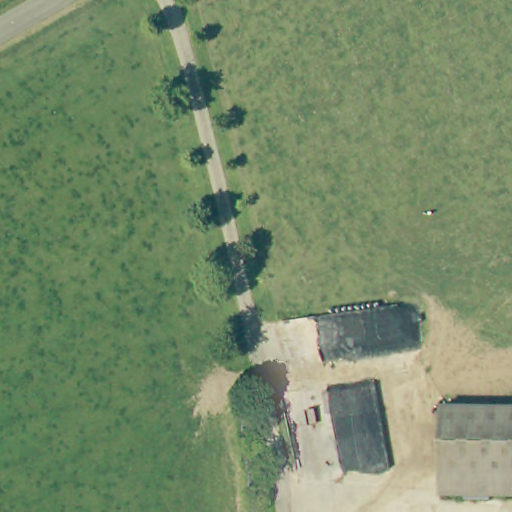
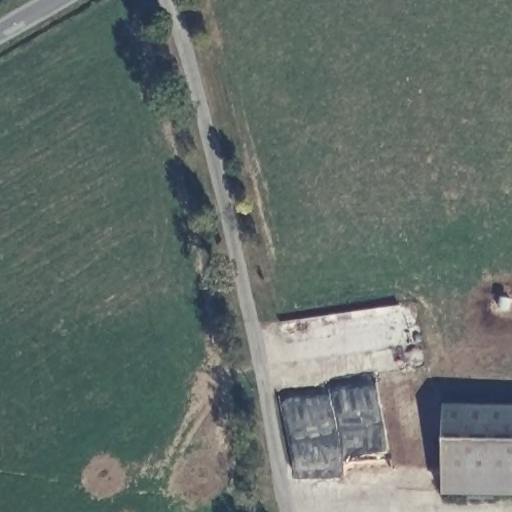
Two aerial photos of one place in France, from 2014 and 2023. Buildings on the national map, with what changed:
unchanged [(441,493),(443,406),(512,406),(512,493),(441,493)]

